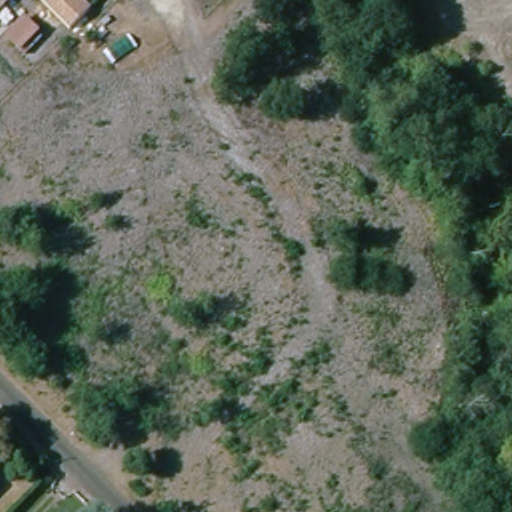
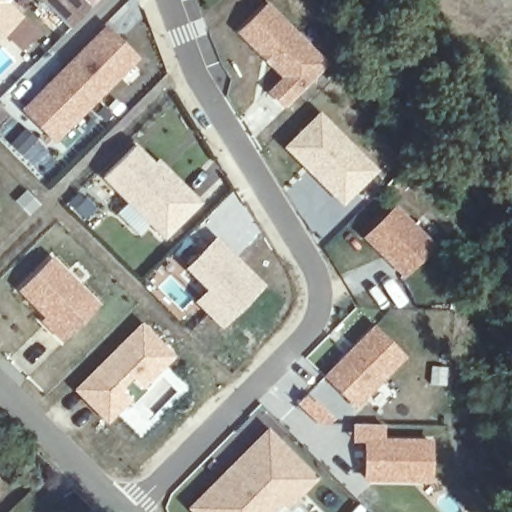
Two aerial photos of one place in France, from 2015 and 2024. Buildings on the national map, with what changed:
new [(22,12),(4,31),(7,34),(0,40),(0,0),(6,0),(22,12)]
unchanged [(87,4),(67,23),(45,0),(83,0),(87,4)]
new [(330,63),(284,108),(266,94),(281,77),(236,33),(268,0),(330,63)]
unchanged [(18,45),(4,31),(22,12),(36,26),(18,45)]
new [(140,59),(54,145),(20,111),(106,25),(140,59)]
new [(319,111),(378,169),(341,205),(284,146),(319,111)]
new [(137,143),(155,159),(158,157),(202,202),(165,238),(103,177),(137,143)]
new [(395,204),(435,243),(402,276),(363,237),(395,204)]
new [(222,328),(194,301),(205,289),(185,267),(216,235),(265,285),(222,328)]
new [(46,318),(18,291),(52,256),(98,305),(63,341),(43,321),(46,318)]
new [(74,389),(142,322),(175,356),(142,388),(131,377),(121,388),(131,399),(108,423),(74,389)]
new [(406,356),(355,407),(324,377),(374,325),(406,356)]
new [(370,437),(357,437),(356,421),(384,420),(383,437),(431,438),(431,475),(368,474),(370,437)]
new [(268,427),(317,477),(285,509),(280,503),(270,512),(192,512),(188,508),(268,427)]

